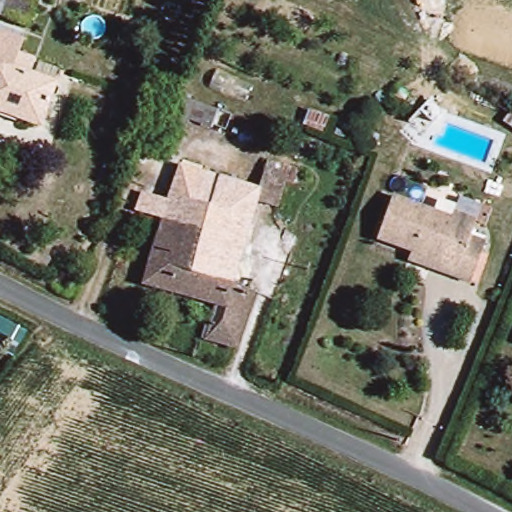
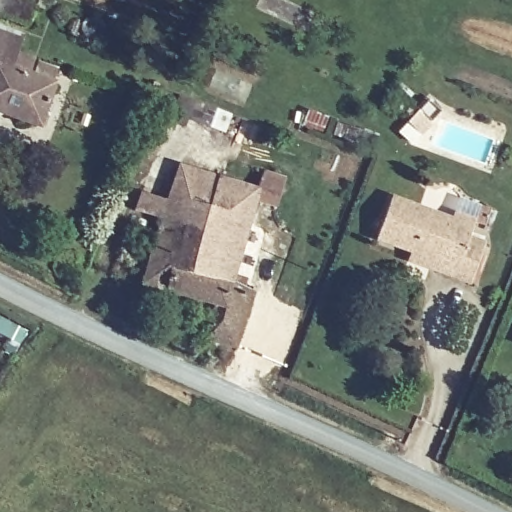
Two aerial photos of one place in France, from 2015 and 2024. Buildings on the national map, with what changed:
unchanged [(0,11),(0,0),(25,0),(19,17),(0,11)]
unchanged [(0,32),(15,37),(5,65),(54,82),(38,124),(0,109),(0,32)]
unchanged [(164,93),(175,66),(194,73),(184,99),(178,96),(167,125),(149,119),(159,92),(164,93)]
unchanged [(299,160),(295,159),(294,162),(282,159),(287,137),(305,144),(299,160)]
unchanged [(159,200),(170,162),(250,184),(260,154),(292,164),(288,179),(279,176),(270,202),(248,197),(228,268),(195,259),(203,231),(155,214),(130,207),(134,194),(159,200)]
unchanged [(408,251),(374,241),(385,201),(446,219),(448,212),(469,217),(464,236),(481,241),(469,278),(433,270),(406,262),(408,251)]
unchanged [(251,286),(234,341),(209,333),(213,320),(218,322),(224,302),(138,277),(155,214),(203,231),(195,259),(228,268),(225,278),(251,286)]
unchanged [(0,337),(0,317),(34,335),(25,352),(0,337)]

